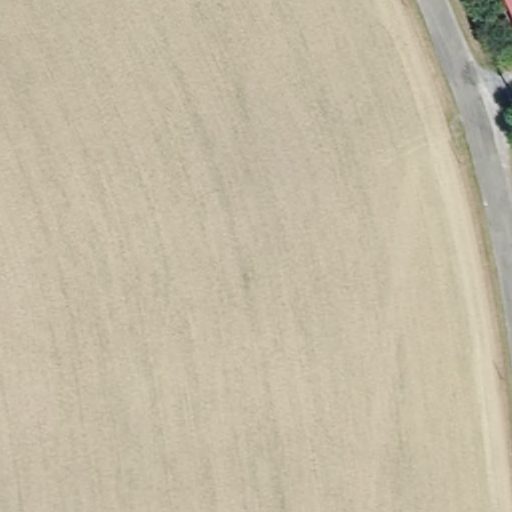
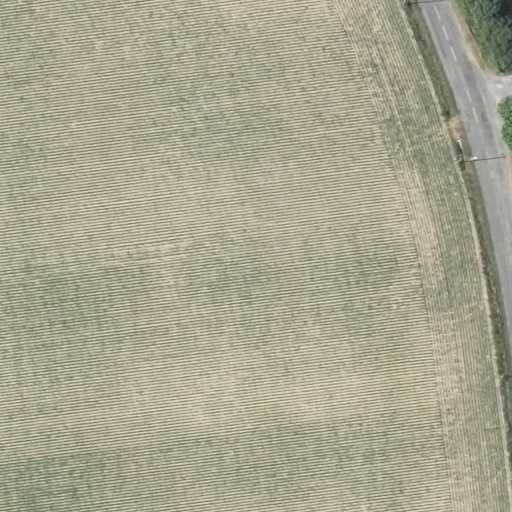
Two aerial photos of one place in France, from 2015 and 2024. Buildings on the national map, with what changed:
unchanged [(499,0),(512,0),(512,31),(499,0)]

